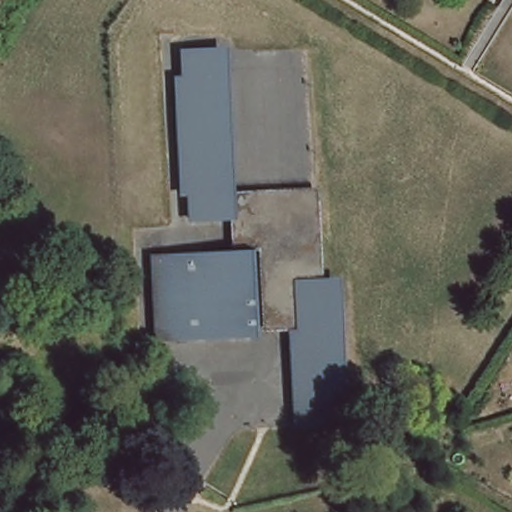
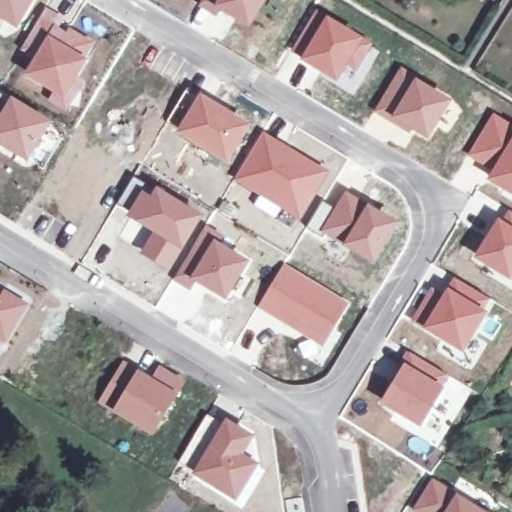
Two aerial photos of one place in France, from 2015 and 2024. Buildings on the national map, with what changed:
new [(16,29),(0,19),(0,0),(34,0),(16,29)]
new [(201,0),(266,0),(248,29),(221,11),(216,17),(197,5),(201,0)]
new [(68,25),(96,42),(78,75),(86,80),(66,112),(46,100),(51,92),(23,75),(33,57),(20,49),(46,6),(60,15),(56,21),(66,28),(68,25)]
new [(317,9),(373,43),(355,72),(346,66),(336,82),(290,52),(317,9)]
demolished [(184,48),(222,45),(230,193),(232,217),(195,219),(193,192),(185,76),(184,48)]
new [(400,66),(452,99),(427,140),(375,111),(400,66)]
new [(197,91),(252,124),(227,164),(173,131),(197,91)]
new [(52,120),(27,161),(0,146),(0,111),(10,94),(52,120)]
new [(493,112),(512,124),(512,194),(485,179),(491,170),(467,155),(493,112)]
new [(262,130),(330,170),(299,220),(281,209),(275,218),(252,205),(258,195),(232,180),(262,130)]
new [(399,222),(373,263),(318,230),(322,223),(313,218),(322,203),(332,208),(344,190),(399,222)]
new [(506,208),(512,212),(512,277),(510,279),(473,256),(506,208)]
demolished [(288,217),(315,216),(316,244),(289,245),(288,217)]
new [(203,229),(252,260),(226,301),(195,282),(190,290),(172,279),(203,229)]
demolished [(170,250),(233,248),(260,247),(265,322),(266,327),(177,331),(174,331),(170,250)]
new [(284,261),(350,301),(322,347),(305,358),(297,345),(306,337),(256,307),(284,261)]
new [(430,286),(442,293),(453,276),(492,299),(462,352),(410,319),(430,286)]
demolished [(301,321),(291,321),(290,279),(300,278),(337,278),(342,418),(303,421),(301,321)]
new [(30,303),(6,344),(0,341),(0,287),(2,288),(30,303)]
new [(407,349),(451,376),(431,410),(433,412),(420,429),(377,403),(407,349)]
new [(123,359),(151,376),(158,364),(186,380),(152,436),(96,402),(123,359)]
new [(451,376),(473,389),(450,427),(445,424),(433,412),(431,410),(451,376)]
new [(207,414),(215,420),(186,468),(178,463),(207,414)]
new [(224,417),(256,435),(246,452),(262,464),(237,504),(189,471),(224,417)]
new [(488,512),(415,512),(411,509),(431,477),(488,512)]

